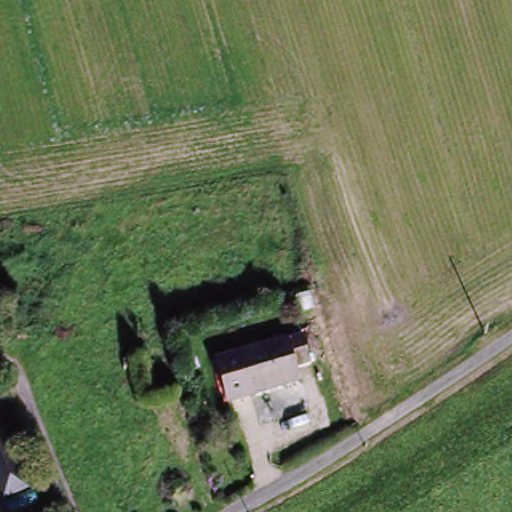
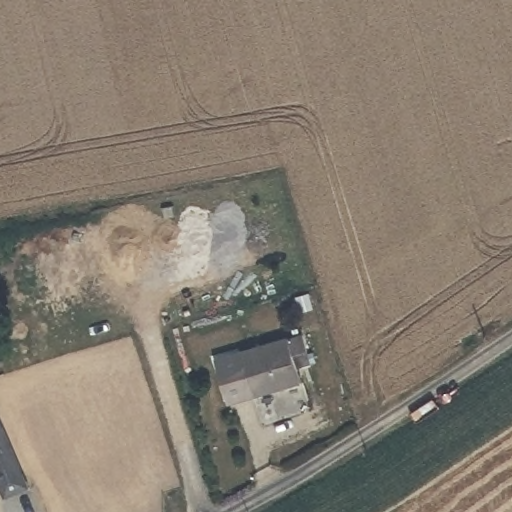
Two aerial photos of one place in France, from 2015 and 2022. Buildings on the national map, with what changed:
unchanged [(320,365),(248,386),(236,345),(322,320),(330,349),(315,353),(320,365)]
unchanged [(6,494),(1,480),(0,477),(0,415),(1,414),(24,471),(30,485),(6,494)]

